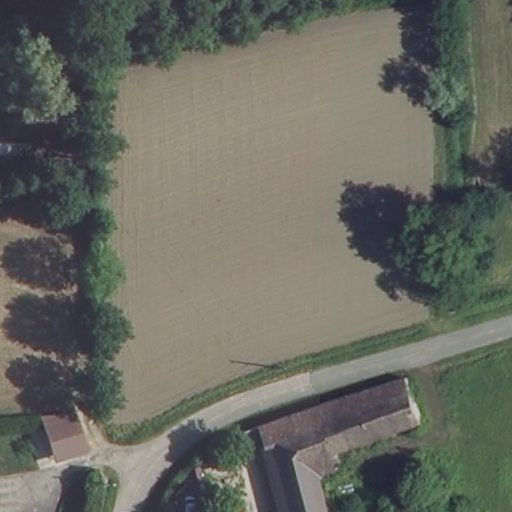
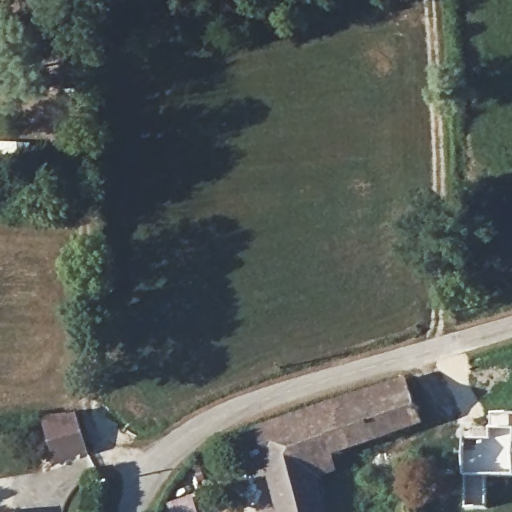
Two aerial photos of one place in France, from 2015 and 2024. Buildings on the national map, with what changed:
unchanged [(74,88),(76,115),(55,117),(53,90),(74,88)]
unchanged [(297,410),(404,378),(414,421),(329,452),(334,470),(310,478),(297,410)]
unchanged [(84,447),(54,455),(43,413),(74,410),(84,447)]
unchanged [(316,512),(282,512),(269,450),(261,451),(255,423),(297,410),(310,478),(316,512)]
new [(464,509),(464,477),(462,437),(488,437),(487,411),(512,412),(512,477),(487,477),(487,508),(464,509)]
unchanged [(397,512),(400,505),(416,512),(397,512)]

